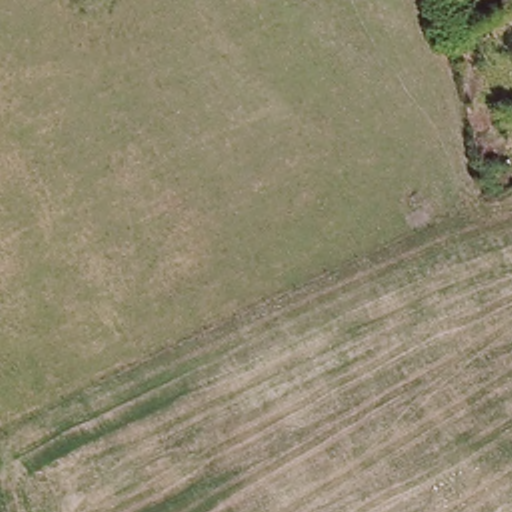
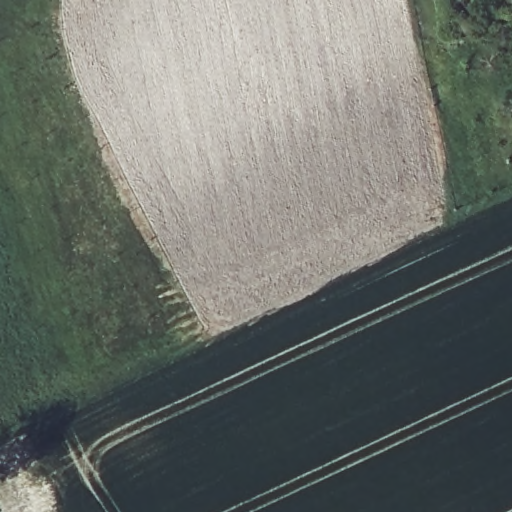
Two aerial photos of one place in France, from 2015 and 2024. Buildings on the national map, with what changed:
[]

